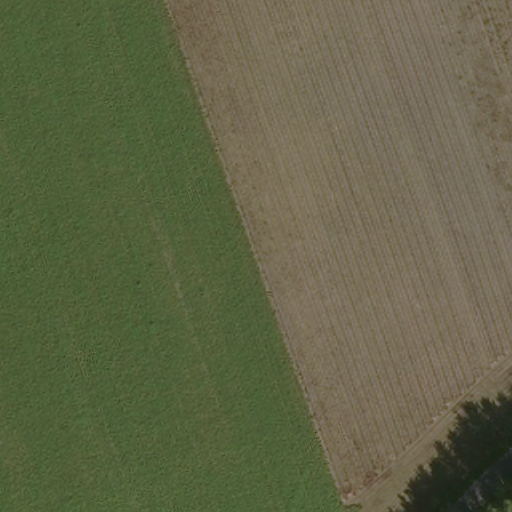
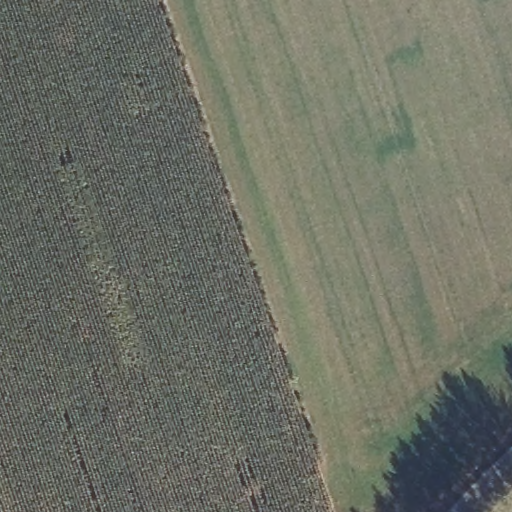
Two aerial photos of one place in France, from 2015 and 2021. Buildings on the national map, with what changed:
[]

